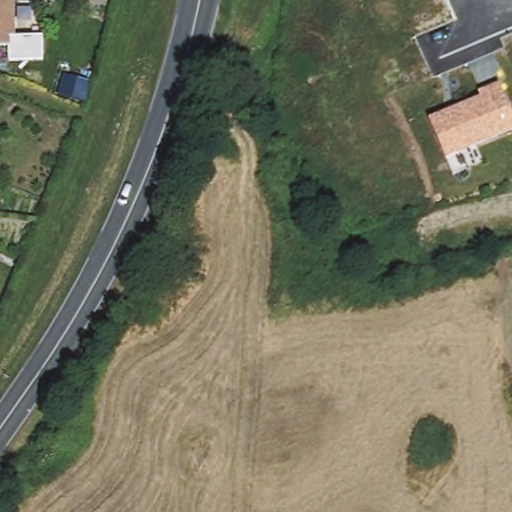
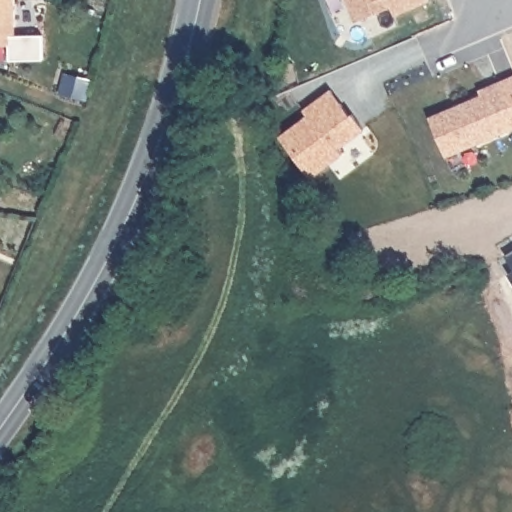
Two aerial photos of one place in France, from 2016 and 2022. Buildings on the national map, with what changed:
unchanged [(20,40),(0,42),(0,0),(18,0),(20,40)]
new [(394,15),(390,7),(357,21),(347,0),(427,0),(428,1),(394,15)]
unchanged [(478,87),(500,79),(512,109),(512,130),(445,157),(429,115),(481,95),(478,87)]
new [(337,150),(342,157),(312,179),(280,136),(306,116),(302,110),(331,90),(362,130),(337,150)]

